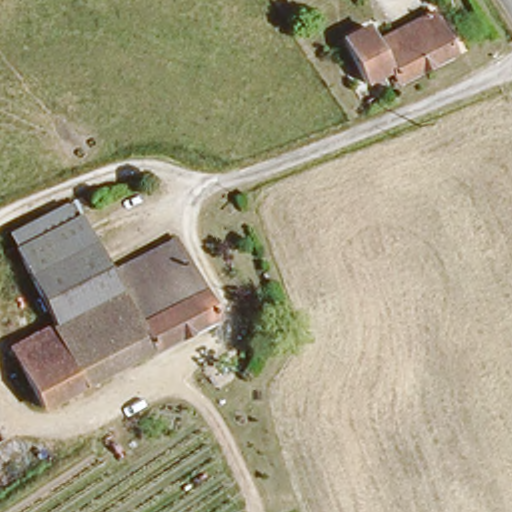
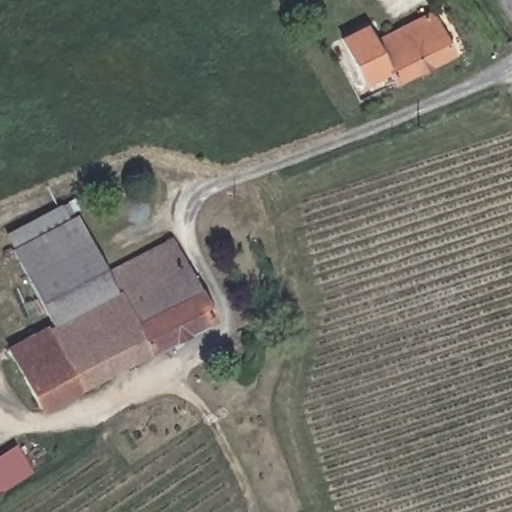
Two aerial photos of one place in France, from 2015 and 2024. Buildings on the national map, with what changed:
unchanged [(425,15),(445,54),(391,82),(386,73),(371,43),(425,15)]
unchanged [(363,27),(371,43),(386,73),(361,86),(338,40),(363,27)]
unchanged [(100,274),(97,276),(107,300),(50,329),(25,268),(15,244),(64,222),(62,211),(70,208),(74,213),(100,274)]
unchanged [(5,352),(50,329),(107,300),(97,276),(100,274),(171,240),(209,320),(140,354),(129,328),(19,379),(5,352)]
unchanged [(31,405),(19,379),(129,328),(140,354),(31,405)]
new [(14,447),(32,474),(0,495),(0,456),(14,447)]

